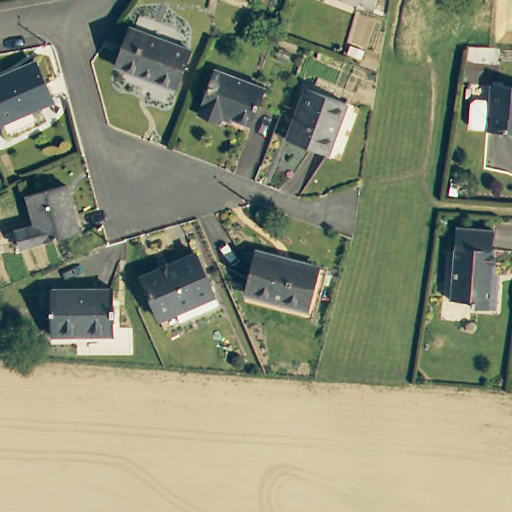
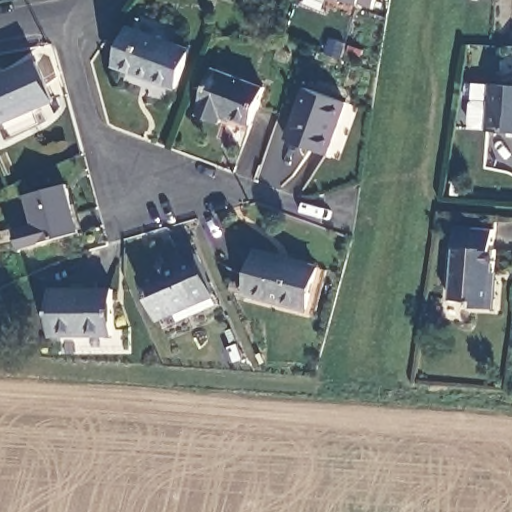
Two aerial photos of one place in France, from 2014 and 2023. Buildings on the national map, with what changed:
unchanged [(370,7),(351,0),(373,0),(370,7)]
unchanged [(186,45),(171,83),(110,60),(125,23),(186,45)]
unchanged [(55,99),(0,122),(0,76),(39,60),(55,99)]
unchanged [(263,83),(246,126),(199,107),(216,64),(263,83)]
unchanged [(512,133),(492,132),(496,83),(512,85),(512,133)]
unchanged [(350,104),(331,156),(290,140),(309,88),(350,104)]
unchanged [(78,233),(21,247),(16,227),(33,223),(26,194),(66,185),(78,233)]
unchanged [(493,249),(497,250),(494,280),(499,280),(496,308),(467,305),(467,302),(451,300),(456,227),(494,230),(493,249)]
unchanged [(218,300),(161,324),(141,272),(198,250),(218,300)]
unchanged [(317,269),(306,307),(245,290),(256,252),(317,269)]
unchanged [(110,337),(48,334),(49,290),(112,292),(110,337)]

